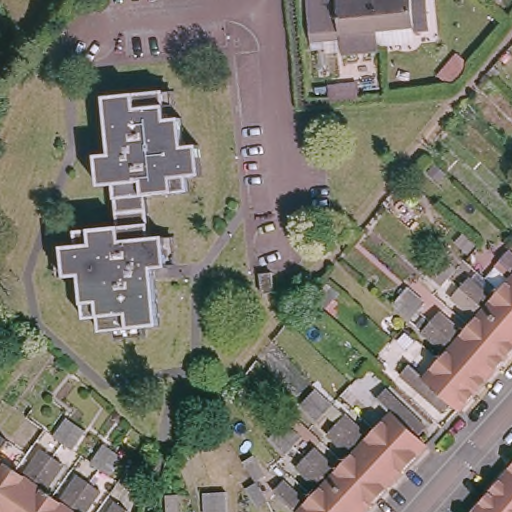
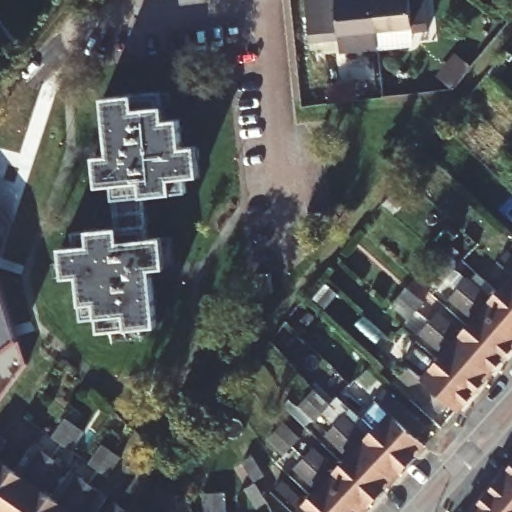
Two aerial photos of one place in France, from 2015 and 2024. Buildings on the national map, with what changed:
unchanged [(347,39),(317,41),(314,0),(382,0),(384,29),(386,48),(387,54),(348,56),(347,51),(347,39)]
unchanged [(434,0),(438,30),(422,32),(421,25),(384,29),(382,0),(434,0)]
unchanged [(330,100),(329,87),(356,84),(357,99),(330,100)]
unchanged [(67,259),(68,259),(80,257),(77,229),(119,224),(114,182),(102,183),(99,154),(112,153),(111,149),(111,140),(107,96),(164,90),(172,90),(173,104),(167,105),(168,116),(182,115),(185,144),(199,143),(202,174),(187,175),(189,189),(147,194),(151,235),(166,234),(173,234),(176,263),(168,264),(157,265),(156,265),(157,274),(157,278),(162,323),(149,324),(149,332),(118,334),(117,327),(102,328),(100,314),(87,315),(82,274),(69,275),(60,276),(59,260),(67,259)]
unchanged [(442,287),(426,272),(433,264),(440,257),(453,268),(457,271),(449,279),(442,287)]
unchanged [(492,271),(500,261),(512,271),(512,320),(492,302),(507,284),(492,271)]
new [(18,339),(28,362),(0,397),(0,278),(18,339)]
unchanged [(511,353),(451,299),(461,288),(486,309),(492,302),(512,320),(512,351),(511,353)]
unchanged [(401,298),(409,289),(427,304),(419,313),(412,320),(395,305),(398,301),(401,298)]
unchanged [(468,331),(443,309),(451,299),(511,353),(510,354),(497,369),(461,338),(468,331)]
unchanged [(497,369),(490,378),(482,387),(421,334),(431,323),(456,344),(461,338),(497,369)]
unchanged [(438,364),(414,343),(421,334),(482,387),(470,401),(467,404),(431,373),(438,364)]
unchanged [(443,413),(434,422),(394,386),(401,377),(416,390),(431,373),(467,404),(452,422),(443,413)]
unchanged [(317,424),(300,409),(307,401),(314,392),(328,404),(332,408),(324,417),(317,424)]
unchanged [(388,416),(372,401),(381,392),(422,429),(413,439),(422,448),(409,462),(408,463),(406,466),(372,434),(388,416)]
unchanged [(406,466),(389,483),(331,429),(341,417),(366,440),(372,434),(406,466)]
unchanged [(70,421),(78,427),(86,433),(75,448),(72,451),(64,445),(56,439),(58,436),(70,421)]
unchanged [(283,427),(300,442),(292,451),(285,459),(269,443),(276,436),(281,429),(283,427)]
unchanged [(347,461),(322,437),(331,429),(389,483),(387,486),(374,500),(372,499),(340,468),(347,461)]
unchanged [(8,438),(0,449),(0,432),(8,438)]
unchanged [(16,466),(25,472),(44,447),(54,454),(13,512),(0,512),(0,488),(16,466)]
unchanged [(123,459),(112,474),(109,478),(101,472),(94,467),(96,463),(107,449),(114,454),(123,459)]
unchanged [(372,499),(374,500),(366,508),(362,512),(353,512),(300,463),(309,452),(334,475),(340,468),(372,499)]
unchanged [(0,488),(0,454),(16,466),(0,488)]
unchanged [(41,512),(13,512),(54,454),(65,463),(47,488),(55,494),(41,512)]
unchanged [(315,494),(291,472),(300,463),(353,512),(321,512),(309,501),(315,494)]
unchanged [(512,466),(512,475),(508,472),(512,466)]
unchanged [(512,475),(512,506),(492,489),(508,472),(512,475)]
unchanged [(63,499),(82,474),(91,480),(67,512),(41,512),(55,494),(63,499)]
unchanged [(131,493),(144,475),(154,482),(140,499),(131,493)]
unchanged [(245,482),(254,477),(265,495),(256,501),(245,482)]
unchanged [(91,480),(101,488),(84,512),(67,512),(91,480)]
unchanged [(321,512),(289,512),(271,494),(279,484),(303,507),(309,501),(321,512)]
unchanged [(478,507),(492,489),(512,506),(512,512),(484,512),(478,507)]
unchanged [(218,497),(228,497),(229,512),(207,512),(207,498),(210,497),(218,497)]
unchanged [(169,498),(181,498),(181,512),(169,512),(169,498)]
unchanged [(118,499),(130,509),(127,512),(108,512),(118,499)]
unchanged [(248,508),(257,503),(262,511),(262,512),(250,512),(248,508)]
unchanged [(478,507),(484,512),(473,512),(478,507)]

